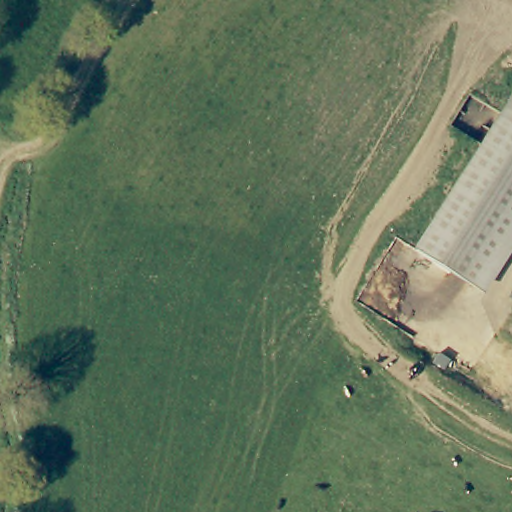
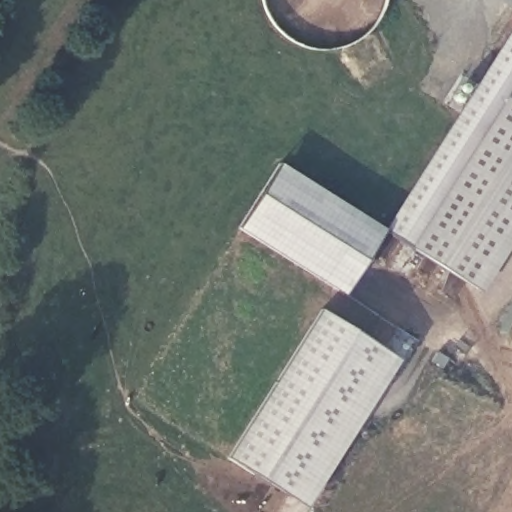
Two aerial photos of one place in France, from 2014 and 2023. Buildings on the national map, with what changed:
new [(280,160),(384,227),(512,27),(512,100),(511,101),(414,249),(384,230),(344,295),(237,229),(280,160)]
unchanged [(511,101),(512,100),(512,102),(511,101)]
unchanged [(483,291),(414,249),(511,101),(512,102),(512,245),(483,291)]
new [(320,310),(399,358),(308,506),(226,456),(320,310)]

